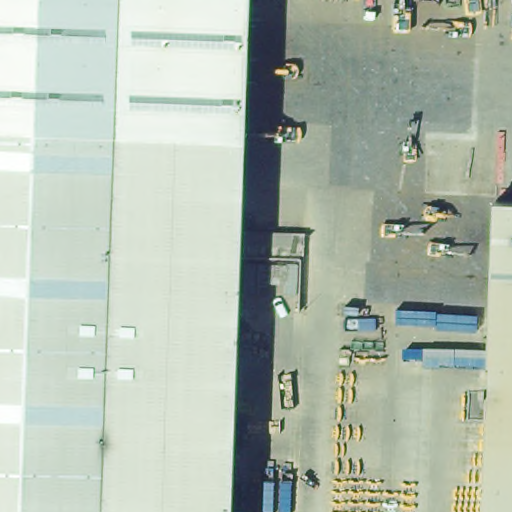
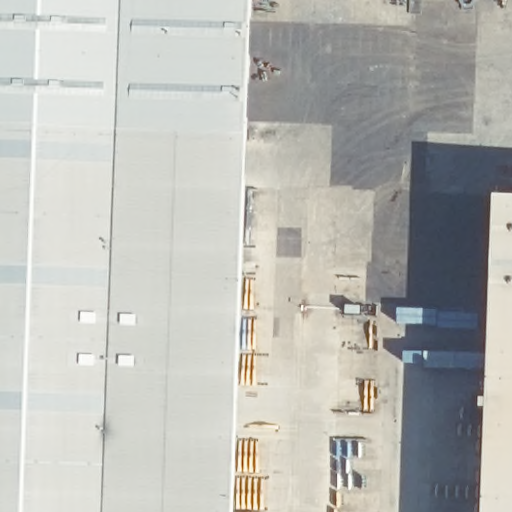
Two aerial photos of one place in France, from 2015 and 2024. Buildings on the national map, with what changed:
unchanged [(233,512),(0,512),(0,0),(253,0),(235,480),(233,512)]
unchanged [(512,512),(491,512),(491,506),(503,202),(512,202),(512,512)]

